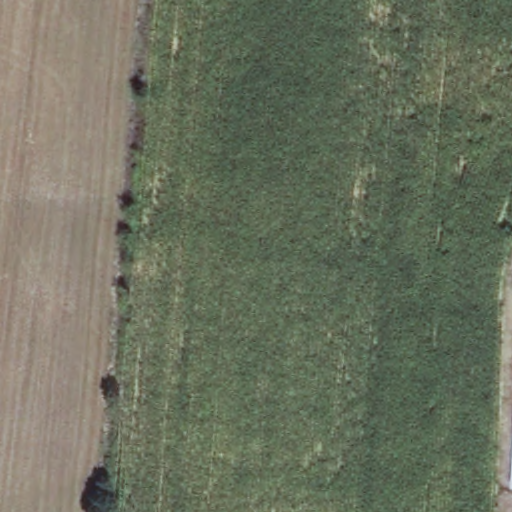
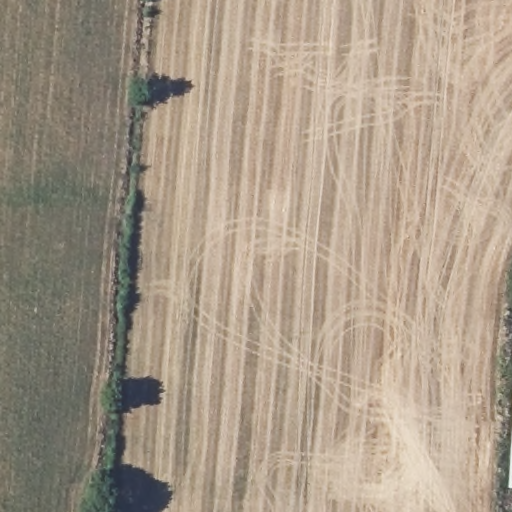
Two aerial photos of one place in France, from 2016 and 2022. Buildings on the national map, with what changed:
[]

